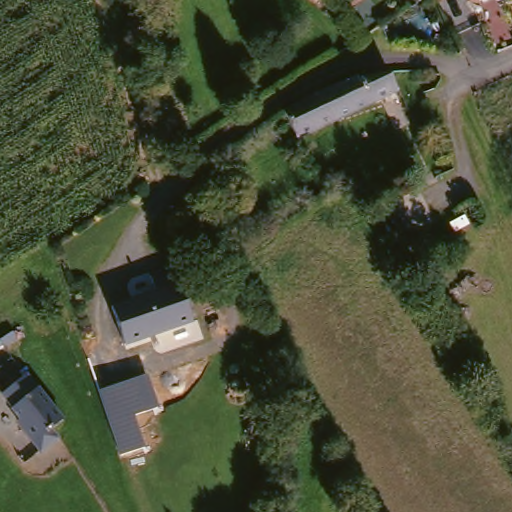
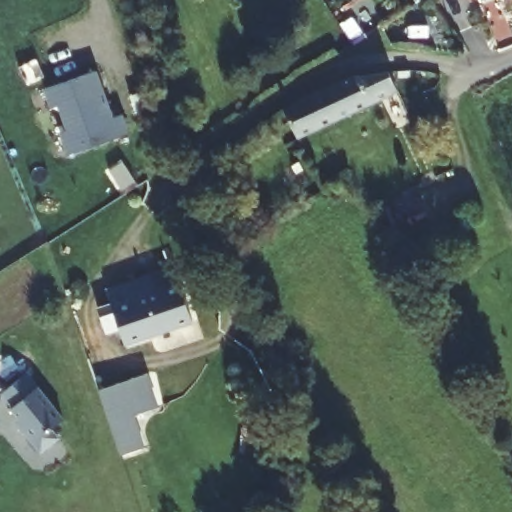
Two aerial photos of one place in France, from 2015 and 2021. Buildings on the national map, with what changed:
new [(114,117),(123,113),(130,133),(68,156),(59,131),(66,128),(58,105),(50,107),(44,89),(97,71),(114,117)]
unchanged [(377,74),(379,78),(392,71),(403,93),(359,114),(347,88),(377,74)]
unchanged [(347,88),(359,114),(314,135),(302,110),(347,88)]
unchanged [(123,347),(111,308),(154,294),(150,279),(169,273),(186,326),(123,347)]
unchanged [(135,414),(145,445),(120,454),(99,390),(149,374),(160,406),(135,414)]
unchanged [(19,423),(9,410),(10,409),(0,397),(0,395),(24,375),(61,422),(49,431),(56,440),(38,454),(18,429),(19,423)]

